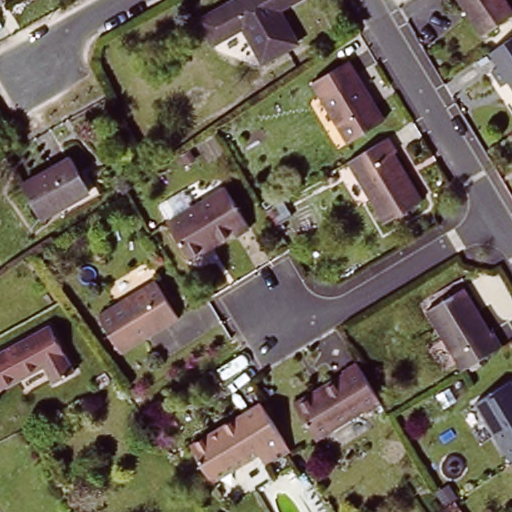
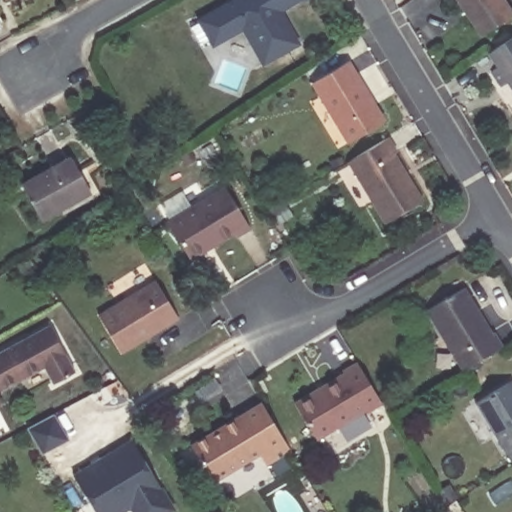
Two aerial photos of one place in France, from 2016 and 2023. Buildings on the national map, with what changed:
unchanged [(277,14),(296,48),(260,67),(240,33),(210,50),(197,25),(241,0),(303,0),(277,14)]
unchanged [(512,7),(512,17),(485,36),(462,0),(507,0),(512,7)]
unchanged [(504,90),(495,74),(500,71),(490,52),(512,37),(512,85),(504,90)]
unchanged [(350,65),(386,122),(352,144),(315,86),(350,65)]
unchanged [(398,159),(425,207),(390,228),(354,166),(392,141),(401,157),(398,159)]
unchanged [(71,162),(88,194),(38,221),(21,189),(71,162)]
unchanged [(250,232),(235,240),(233,236),(188,261),(168,225),(226,190),(250,232)]
unchanged [(102,322),(155,283),(180,318),(127,357),(102,322)]
unchanged [(461,367),(427,306),(465,283),(481,311),(478,313),(481,318),(486,318),(494,331),(497,328),(505,341),(461,367)]
unchanged [(55,340),(76,378),(55,391),(46,373),(24,385),(0,398),(0,357),(50,329),(55,340)]
unchanged [(365,412),(318,440),(296,403),(345,373),(343,370),(357,362),(384,405),(367,415),(365,412)]
unchanged [(475,405),(510,382),(512,385),(512,461),(475,405)]
unchanged [(285,457),(266,466),(260,455),(215,481),(193,444),(214,432),(215,434),(229,426),(227,423),(245,412),(247,415),(262,406),(284,440),(277,443),(285,457)]
new [(174,511),(171,512),(133,512),(130,507),(122,512),(97,512),(73,473),(131,440),(174,511)]

